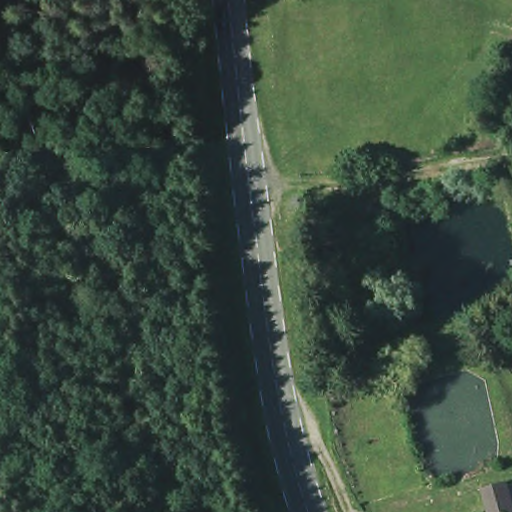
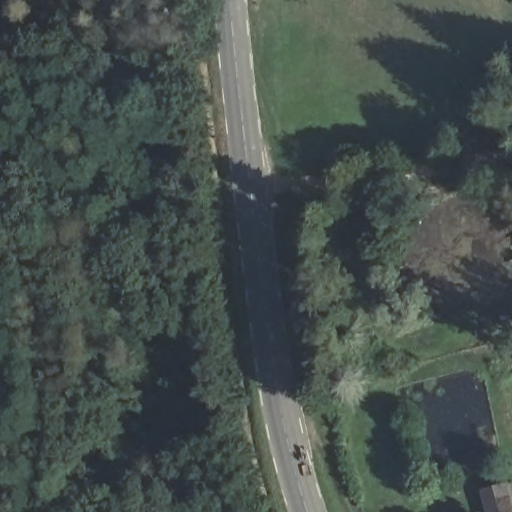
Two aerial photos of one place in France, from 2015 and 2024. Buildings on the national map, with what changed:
unchanged [(509,488),(512,501),(512,512),(495,512),(490,493),(509,488)]

